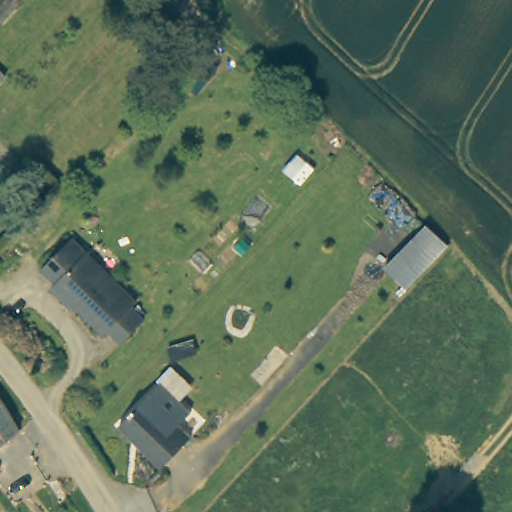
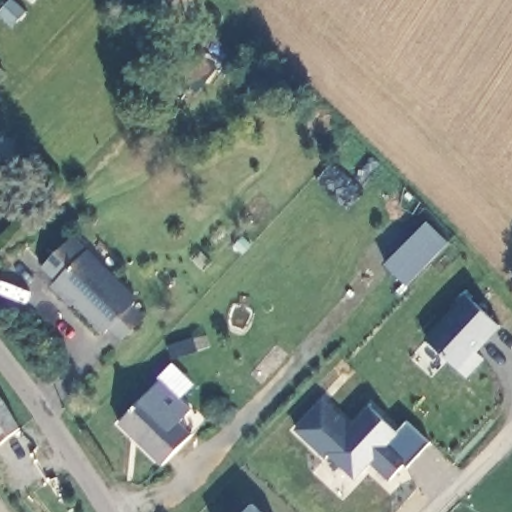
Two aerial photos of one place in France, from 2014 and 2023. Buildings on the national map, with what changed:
unchanged [(383,266),(423,222),(446,244),(405,287),(383,266)]
unchanged [(119,335),(107,324),(102,329),(70,296),(65,302),(50,288),(56,282),(40,266),(68,234),(135,295),(130,300),(142,312),(119,335)]
new [(501,328),(476,355),(484,362),(470,379),(460,370),(426,341),(466,294),(501,328)]
unchanged [(191,431),(165,462),(120,421),(147,392),(191,431)]
new [(408,467),(405,464),(392,479),(372,463),(355,481),(327,459),(327,461),(295,432),(323,399),(351,426),(368,406),(398,433),(407,423),(429,443),(408,467)]
unchanged [(0,438),(0,404),(17,427),(0,438)]
new [(263,512),(247,512),(254,504),(263,512)]

